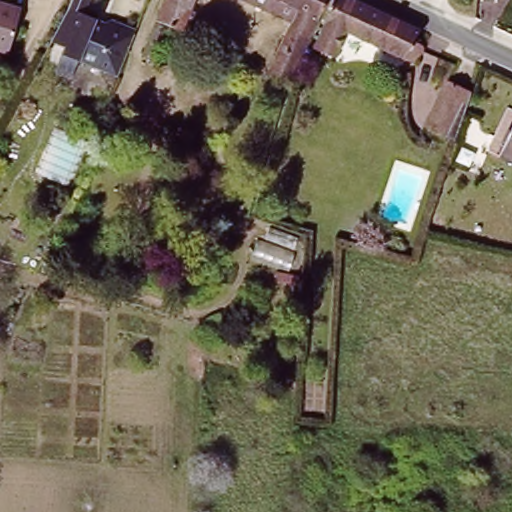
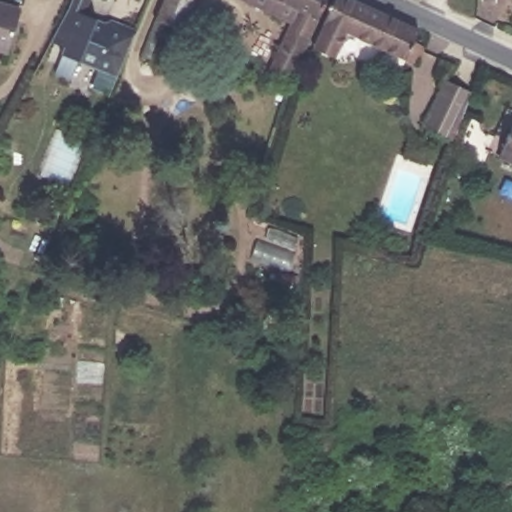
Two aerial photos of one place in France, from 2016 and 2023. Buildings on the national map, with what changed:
unchanged [(97,22),(95,27),(105,31),(107,25),(134,36),(127,52),(117,78),(62,57),(64,50),(50,44),(68,11),(72,0),(87,0),(81,14),(97,22)]
unchanged [(168,0),(196,0),(184,32),(160,23),(168,0)]
unchanged [(278,79),(268,74),(292,17),(254,0),(326,0),(293,76),(282,72),(278,79)]
unchanged [(319,39),(334,0),(360,0),(431,32),(426,42),(428,44),(430,46),(429,49),(428,51),(426,53),(421,52),(417,61),(350,29),(341,49),(338,55),(316,45),(319,39)]
unchanged [(20,12),(8,53),(0,51),(0,7),(20,12)]
unchanged [(443,81),(475,91),(459,140),(427,128),(443,81)]
unchanged [(511,114),(512,115),(512,161),(495,154),(511,114)]

